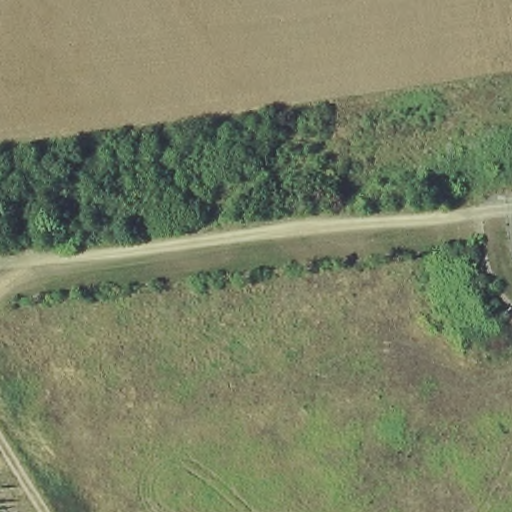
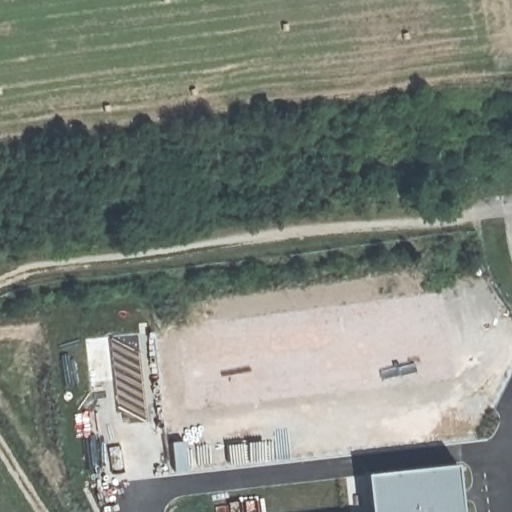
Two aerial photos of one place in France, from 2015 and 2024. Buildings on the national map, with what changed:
new [(457,462),(462,512),(368,512),(364,473),(457,462)]

